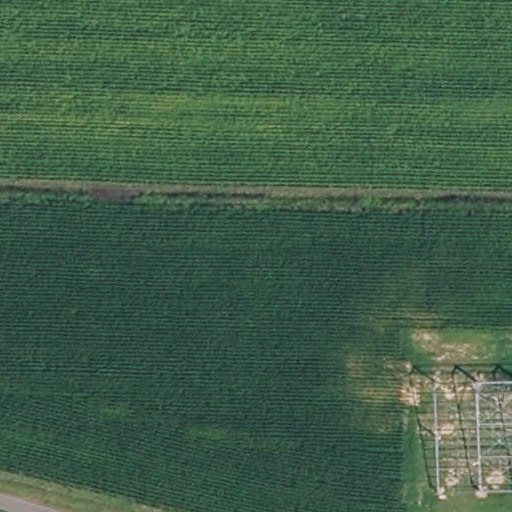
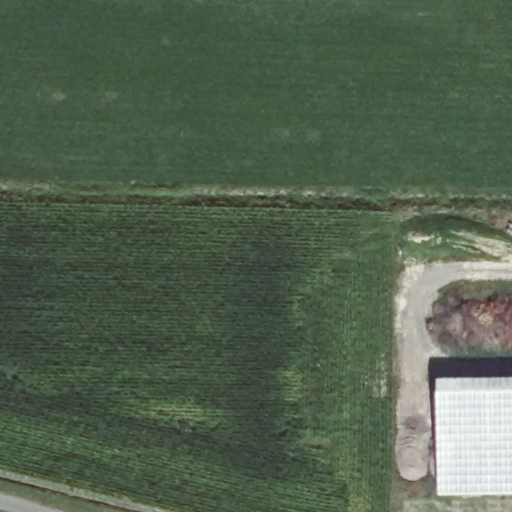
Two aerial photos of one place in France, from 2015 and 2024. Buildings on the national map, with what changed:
new [(512,380),(512,494),(438,495),(436,381),(512,380)]

